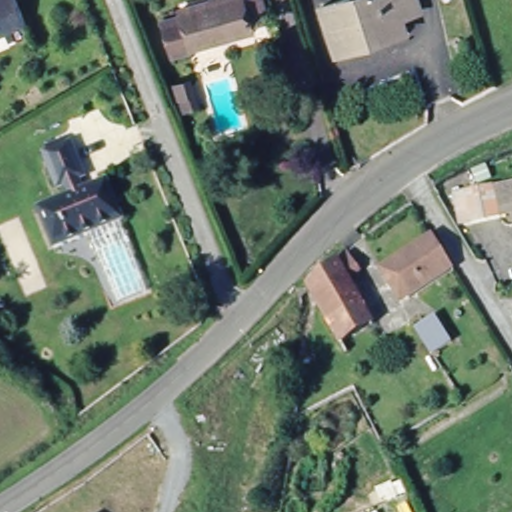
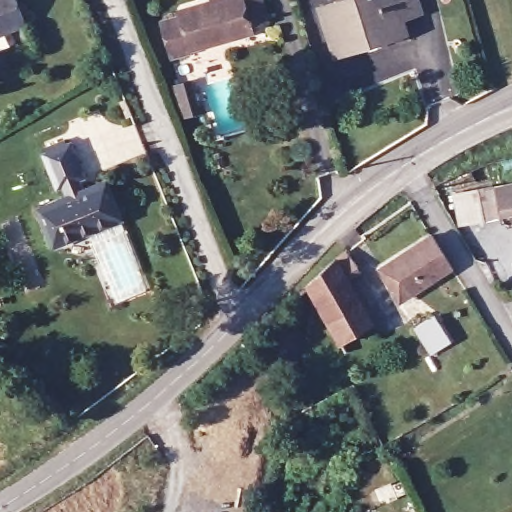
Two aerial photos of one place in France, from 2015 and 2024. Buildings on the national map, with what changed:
unchanged [(32,25),(0,38),(0,0),(21,0),(32,25)]
unchanged [(174,16),(171,8),(199,0),(266,0),(272,22),(259,25),(260,36),(171,57),(159,20),(174,16)]
unchanged [(332,64),(316,17),(354,3),(353,0),(405,0),(410,16),(398,22),(401,37),(332,64)]
unchanged [(197,94),(208,124),(193,130),(180,100),(197,94)]
unchanged [(71,139),(74,144),(78,142),(91,179),(86,182),(91,190),(113,182),(127,221),(60,248),(45,208),(74,197),(71,188),(65,190),(51,157),(55,155),(52,147),(71,139)]
unchanged [(496,185),(512,182),(512,210),(501,212),(496,185)]
unchanged [(457,212),(453,192),(493,184),(499,214),(469,221),(459,222),(457,212)]
unchanged [(409,306),(384,269),(433,234),(456,270),(409,306)]
unchanged [(347,249),(362,271),(348,278),(398,362),(354,387),(341,369),(351,362),(304,282),(347,249)]
unchanged [(454,341),(435,355),(417,328),(438,314),(454,341)]

